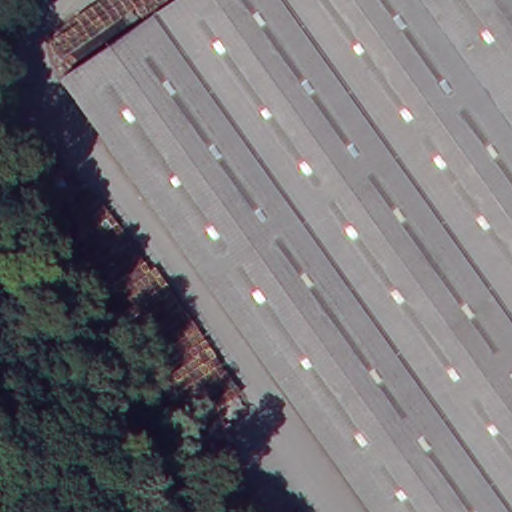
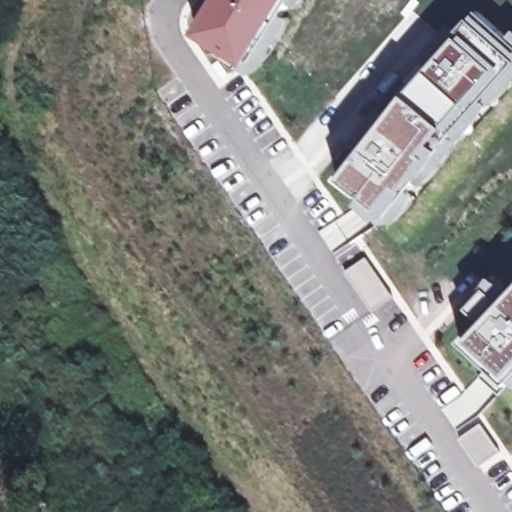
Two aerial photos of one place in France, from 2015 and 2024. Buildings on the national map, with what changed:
demolished [(62,69),(158,0),(512,0),(512,512),(379,512),(62,69)]
new [(291,0),(250,66),(198,35),(219,0),(291,0)]
new [(512,41),(512,68),(508,72),(452,132),(385,220),(337,182),(343,177),(407,97),(461,37),(458,33),(473,18),(480,12),(512,41)]
new [(482,319),(470,309),(490,287),(501,297),(512,286),(512,379),(508,383),(462,341),(482,319)]
new [(460,440),(480,426),(498,452),(477,466),(460,440)]

